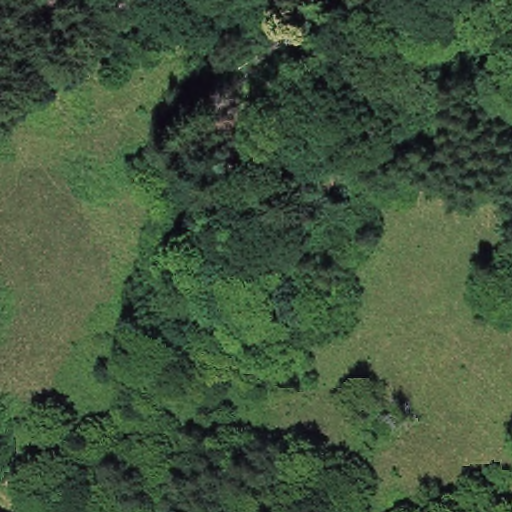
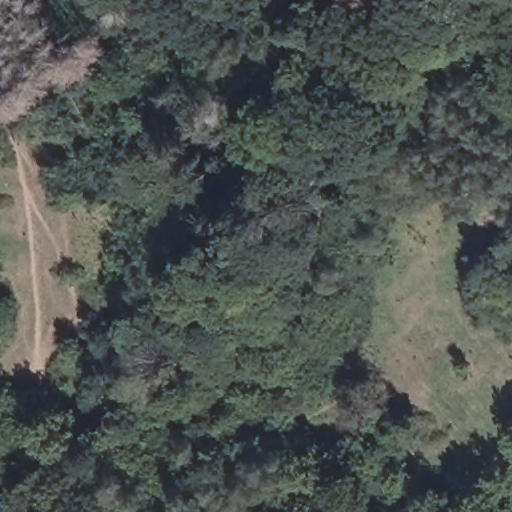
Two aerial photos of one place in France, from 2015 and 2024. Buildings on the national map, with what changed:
[]

